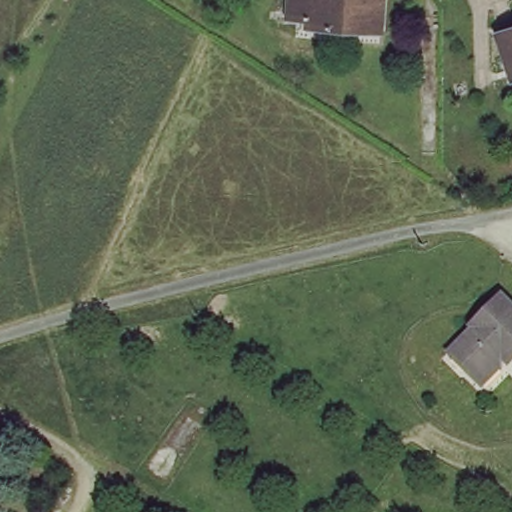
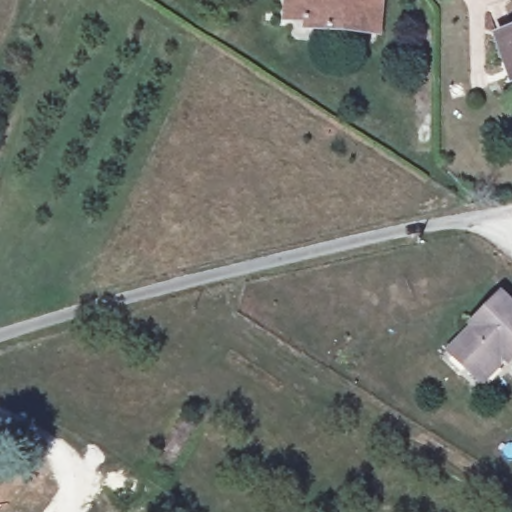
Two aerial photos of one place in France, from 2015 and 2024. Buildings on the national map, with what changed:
unchanged [(363,15),(360,36),(308,29),(309,21),(283,18),(285,0),(380,0),(378,16),(363,15)]
unchanged [(494,33),(512,26),(512,77),(510,78),(494,33)]
unchanged [(512,356),(507,360),(504,357),(475,380),(448,346),(472,327),(468,323),(507,292),(512,298),(512,356)]

